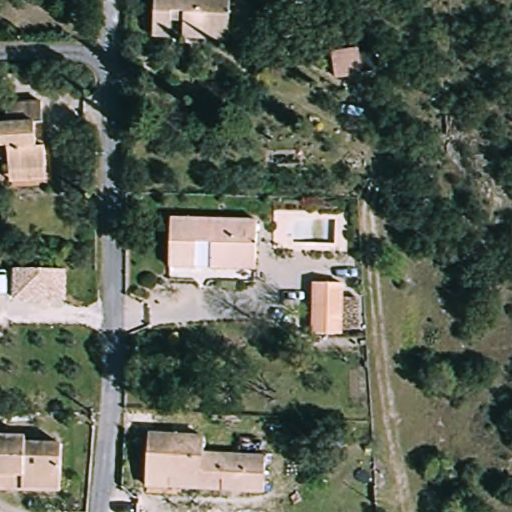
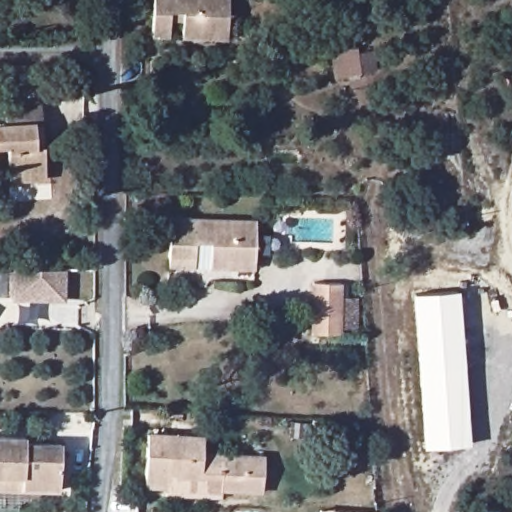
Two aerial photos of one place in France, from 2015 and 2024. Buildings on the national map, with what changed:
unchanged [(197,39),(181,39),(180,24),(162,23),(163,39),(150,40),(149,0),(220,0),(222,29),(222,39),(197,39)]
unchanged [(323,54),(355,49),(357,76),(327,79),(323,54)]
unchanged [(7,165),(7,147),(0,147),(0,125),(3,125),(3,118),(2,104),(35,102),(37,117),(37,123),(24,124),(25,150),(37,150),(38,165),(38,170),(39,182),(7,184),(7,171),(7,165)]
unchanged [(227,268),(209,266),(212,241),(193,239),(192,254),(190,265),(166,262),(167,250),(172,217),(257,226),(252,262),(251,272),(227,268)]
new [(8,269),(58,271),(57,296),(7,294),(8,269)]
unchanged [(336,338),(310,335),(314,286),(342,289),(336,338)]
new [(422,446),(412,295),(459,291),(469,443),(422,446)]
unchanged [(150,488),(152,437),(205,439),(205,455),(267,456),(266,491),(222,490),(171,488),(150,488)]
unchanged [(21,447),(57,450),(54,497),(21,496),(0,495),(0,442),(21,442),(21,447)]
new [(319,512),(319,510),(363,512),(319,512)]

